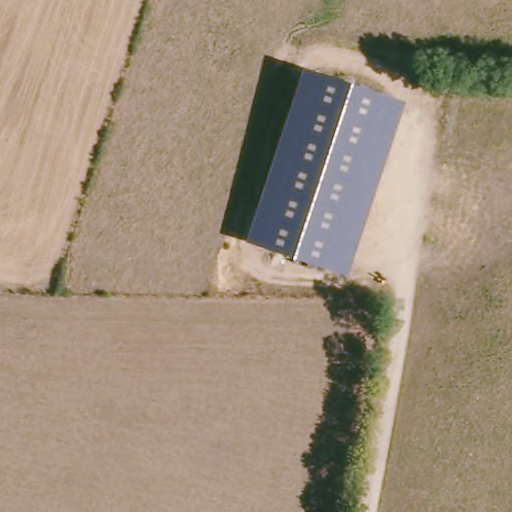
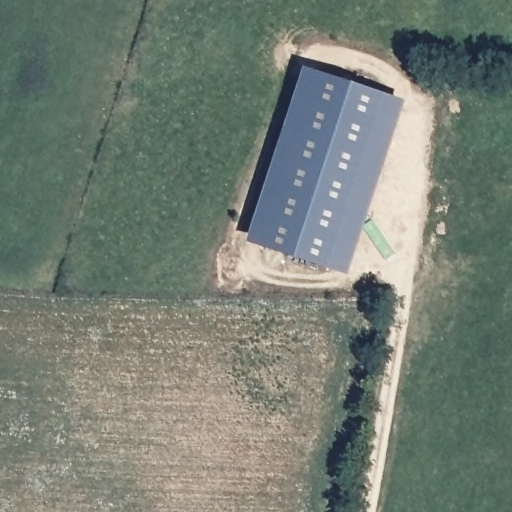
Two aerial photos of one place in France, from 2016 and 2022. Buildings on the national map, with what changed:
unchanged [(402,104),(345,274),(245,241),(303,68),(402,104)]

